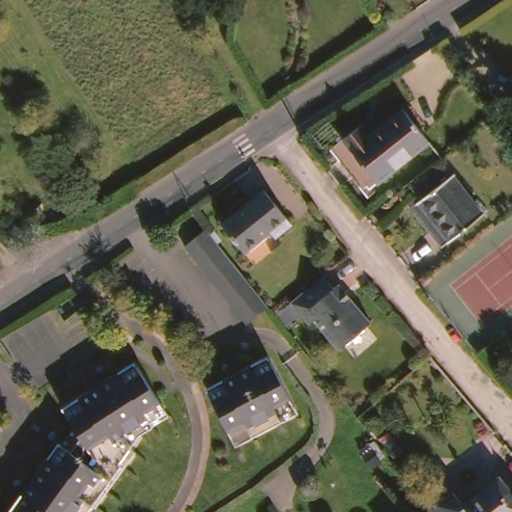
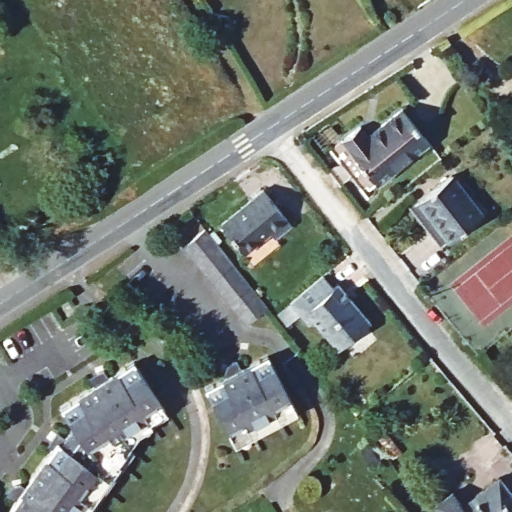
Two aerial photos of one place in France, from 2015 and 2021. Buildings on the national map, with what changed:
unchanged [(424,145),(372,185),(337,141),(355,130),(363,139),(399,113),(424,145)]
unchanged [(444,247),(409,203),(418,196),(422,201),(454,176),(485,215),(444,247)]
unchanged [(290,227),(273,239),(266,232),(239,253),(216,225),(260,190),(290,227)]
unchanged [(263,309),(243,325),(185,249),(206,234),(263,309)]
unchanged [(329,290),(336,286),(365,324),(333,350),(309,321),(303,327),(294,317),(280,328),(271,317),(285,305),(319,277),(329,290)]
unchanged [(59,428),(69,434),(75,425),(64,406),(97,383),(92,375),(104,367),(109,375),(133,359),(162,403),(136,421),(124,438),(129,446),(90,500),(85,498),(75,512),(6,512),(17,497),(10,492),(17,482),(25,487),(55,445),(50,441),(59,428)]
unchanged [(293,412),(229,443),(205,394),(224,385),(219,374),(235,367),(240,377),(269,363),(293,412)]
unchanged [(466,499),(501,472),(512,486),(512,512),(436,512),(432,506),(455,487),(466,499)]

